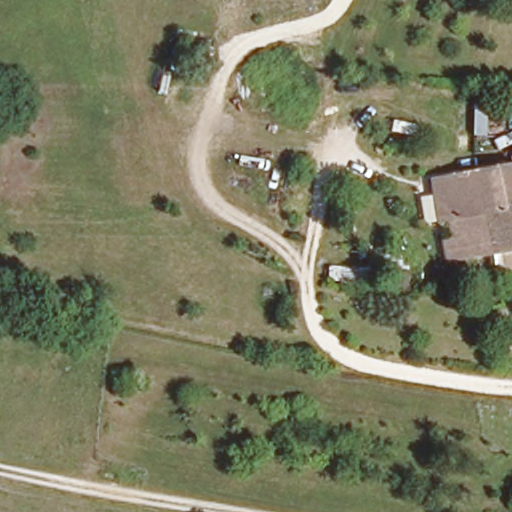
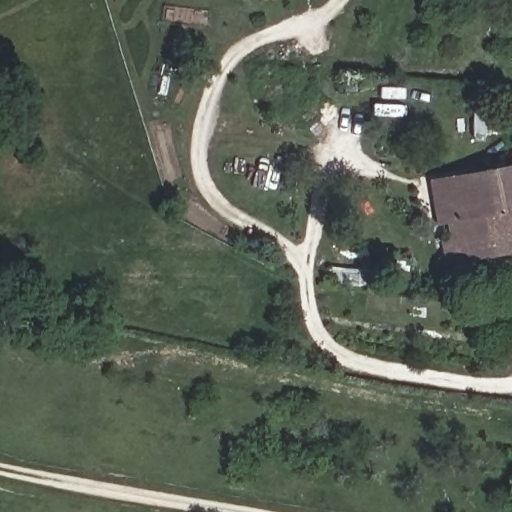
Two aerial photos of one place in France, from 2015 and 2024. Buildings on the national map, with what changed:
unchanged [(512,158),(512,248),(443,268),(421,175),(512,158)]

